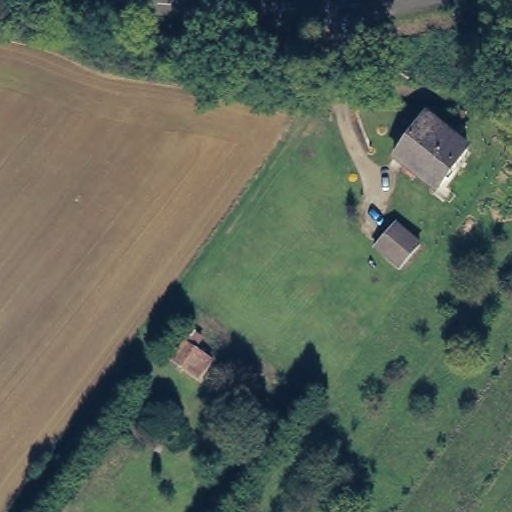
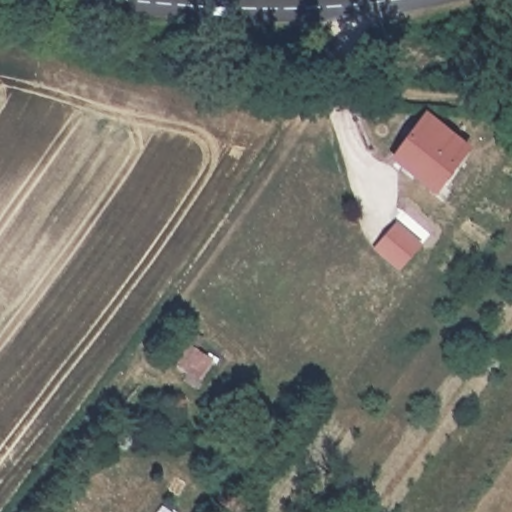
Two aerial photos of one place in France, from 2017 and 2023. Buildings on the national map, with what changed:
unchanged [(423,114),(463,146),(433,187),(391,154),(423,114)]
unchanged [(402,230),(419,244),(397,269),(381,254),(402,230)]
unchanged [(204,382),(166,358),(177,337),(186,340),(192,329),(206,342),(202,352),(216,361),(204,382)]

